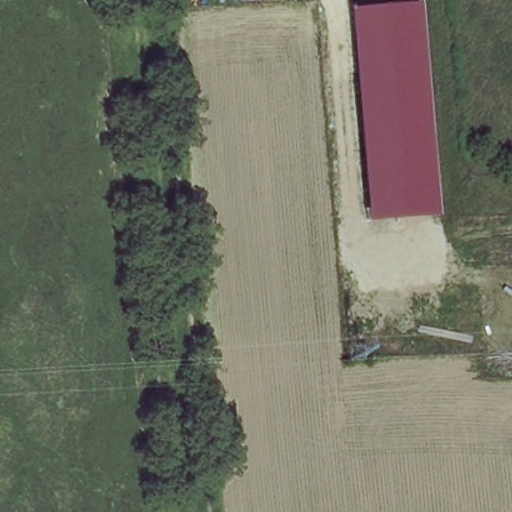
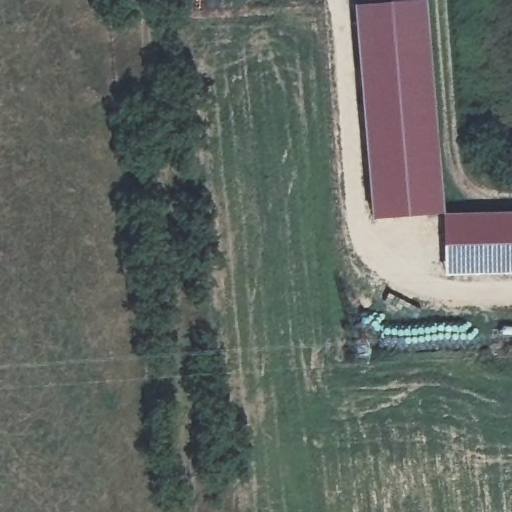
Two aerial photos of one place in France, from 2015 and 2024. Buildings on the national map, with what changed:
unchanged [(372,220),(355,6),(427,0),(443,214),(372,220)]
new [(512,212),(512,272),(447,274),(447,214),(512,212)]

